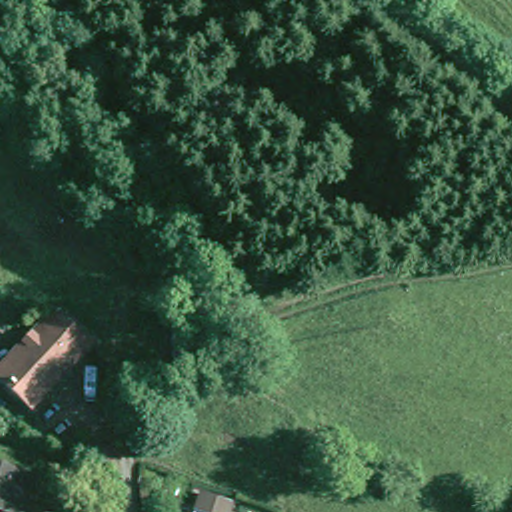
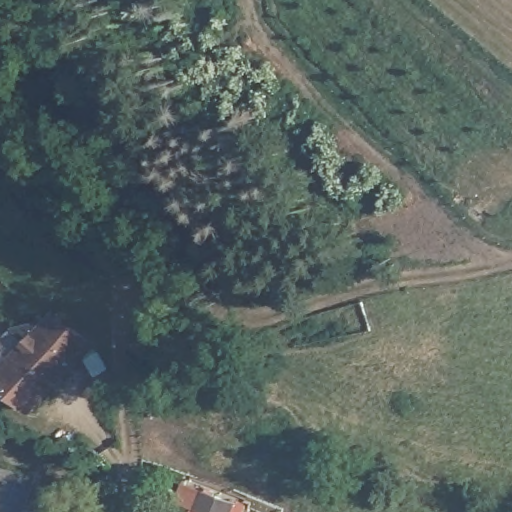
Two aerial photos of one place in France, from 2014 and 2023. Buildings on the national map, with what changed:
unchanged [(39,326),(52,313),(87,345),(90,350),(27,415),(4,393),(0,397),(0,368),(39,326)]
unchanged [(31,476),(21,512),(4,512),(0,511),(0,468),(31,476)]
unchanged [(207,495),(236,509),(235,512),(204,512),(201,510),(204,502),(207,495)]

